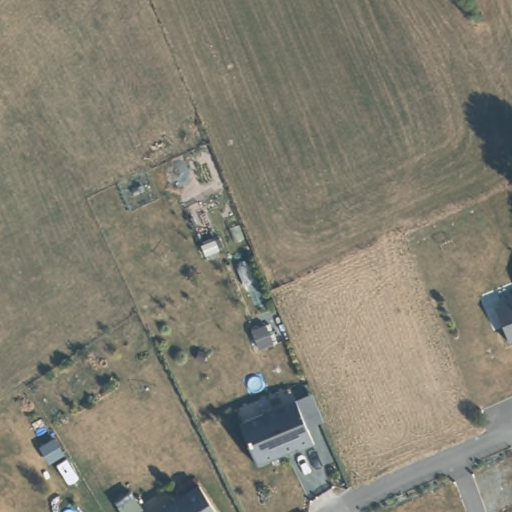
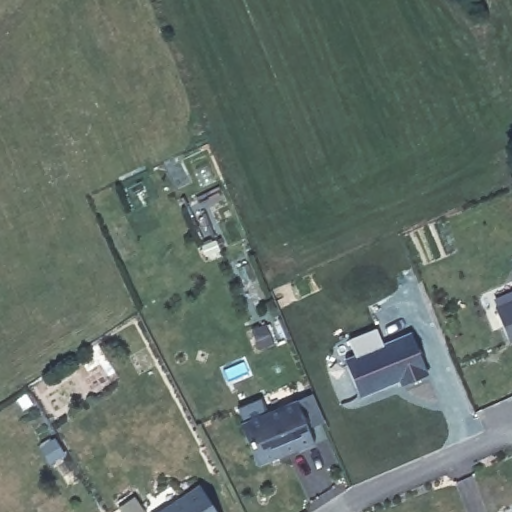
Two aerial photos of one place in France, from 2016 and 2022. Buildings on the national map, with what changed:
unchanged [(492,305),(512,297),(512,337),(506,340),(492,305)]
new [(343,358),(354,354),(348,337),(376,325),(383,342),(411,331),(427,374),(401,386),(399,382),(359,398),(343,358)]
unchanged [(297,396),(317,439),(301,446),(300,444),(261,462),(243,421),(297,396)]
unchanged [(202,485),(219,512),(160,512),(202,485)]

